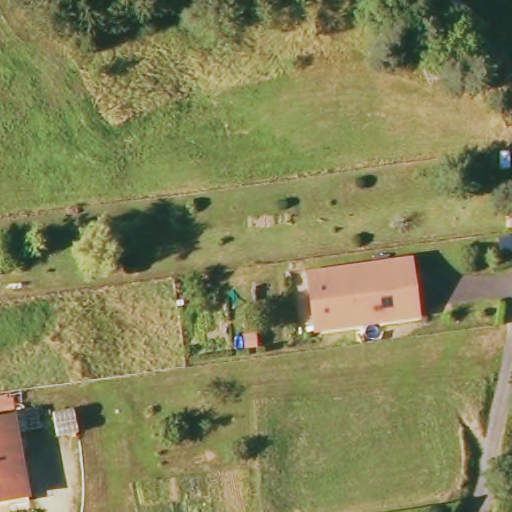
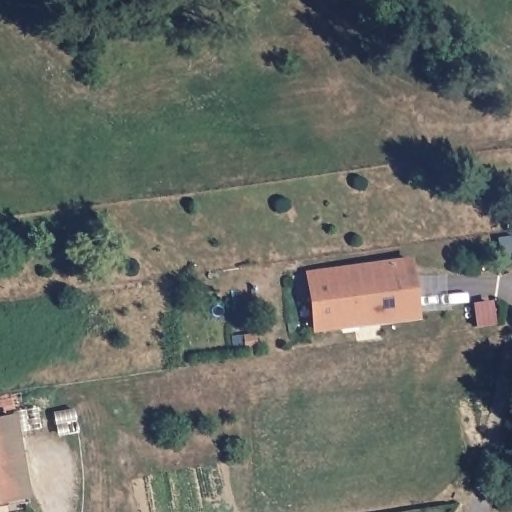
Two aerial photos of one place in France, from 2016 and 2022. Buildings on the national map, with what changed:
unchanged [(418,321),(311,335),(303,273),(410,259),(418,321)]
unchanged [(0,505),(0,418),(3,417),(15,457),(26,496),(15,500),(0,505)]

